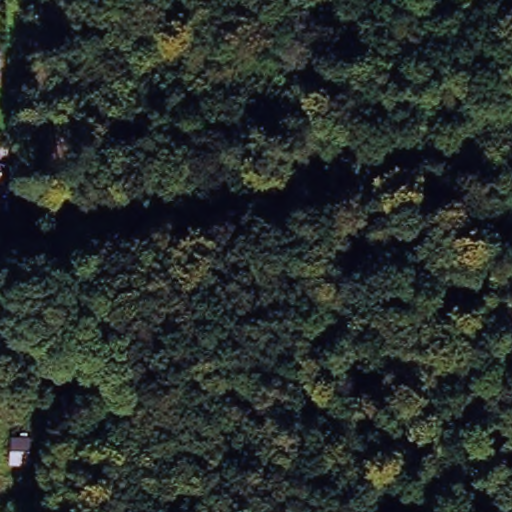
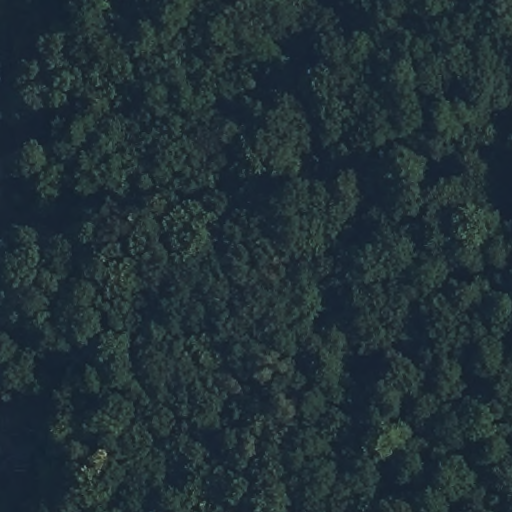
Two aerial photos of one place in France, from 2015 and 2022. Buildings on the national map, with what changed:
unchanged [(28,437),(27,474),(8,475),(8,438),(28,437)]

